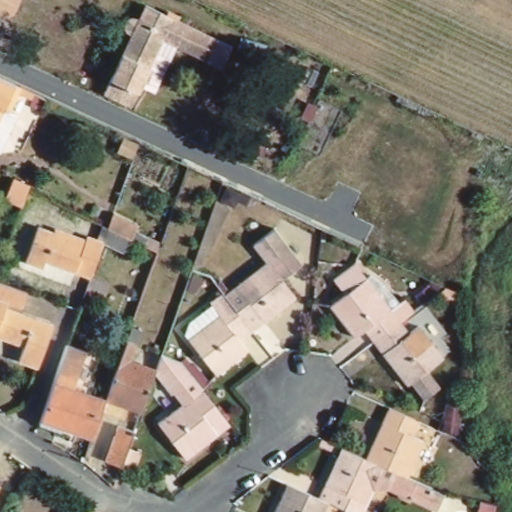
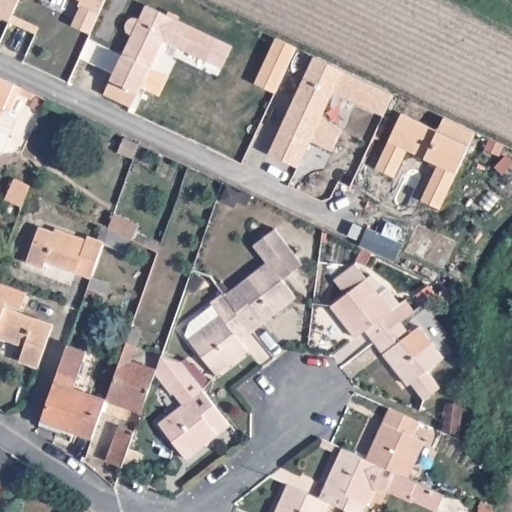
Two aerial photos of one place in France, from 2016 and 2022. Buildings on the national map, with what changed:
unchanged [(18,0),(8,22),(0,18),(0,0),(18,0)]
new [(80,0),(103,0),(97,14),(88,33),(70,24),(79,5),(78,5),(80,0)]
unchanged [(217,44),(207,65),(162,44),(156,57),(162,60),(146,94),(140,91),(130,112),(104,99),(131,40),(126,38),(124,34),(124,29),(126,25),(131,23),(136,24),(139,25),(146,10),(217,44)]
new [(310,53),(389,90),(379,112),(328,88),(317,111),(336,128),(327,147),(305,136),(292,164),(264,150),(310,53)]
unchanged [(15,86),(3,112),(0,110),(0,79),(15,86)]
new [(399,112),(435,129),(441,115),(471,129),(436,205),(419,197),(436,161),(403,145),(391,173),(374,164),(399,112)]
unchanged [(3,136),(0,143),(0,130),(3,136)]
unchanged [(28,189),(22,206),(5,198),(12,182),(28,189)]
unchanged [(225,299),(269,267),(254,248),(276,231),(303,268),(283,283),(296,301),(253,336),(233,309),(225,299)]
unchanged [(101,268),(97,279),(51,263),(48,272),(30,265),(42,233),(58,239),(60,235),(91,246),(93,240),(109,245),(101,268)]
unchanged [(426,403),(413,387),(410,389),(376,346),(366,334),(357,342),(356,341),(332,310),(342,303),(347,299),(335,285),(356,269),(367,284),(372,280),(386,289),(400,307),(406,303),(415,314),(407,321),(400,327),(410,339),(420,331),(429,342),(444,362),(428,374),(441,392),(426,403)]
unchanged [(457,297),(443,298),(441,289),(447,285),(455,289),(457,290),(457,297)]
unchanged [(54,328),(39,370),(19,363),(25,349),(0,340),(0,286),(26,294),(20,309),(8,305),(6,310),(54,328)]
unchanged [(253,336),(242,345),(249,354),(217,378),(189,343),(233,309),(253,336)]
unchanged [(142,412),(107,400),(108,399),(107,399),(129,338),(138,340),(131,359),(157,369),(142,412)]
unchanged [(40,423),(41,418),(43,414),(62,358),(68,342),(99,353),(86,392),(107,399),(108,399),(107,400),(94,437),(70,428),(68,433),(40,423)]
unchanged [(187,463),(160,427),(204,394),(231,428),(187,463)]
unchanged [(289,483),(320,497),(343,447),(367,458),(391,407),(421,421),(415,434),(427,440),(410,477),(440,490),(447,493),(441,506),(439,511),(419,501),(411,498),(389,488),(374,489),(364,512),(352,512),(330,502),(325,512),(276,512),(289,483)]
unchanged [(123,466),(107,460),(120,426),(135,432),(123,466)]
unchanged [(3,483),(0,489),(0,481),(3,483)]

